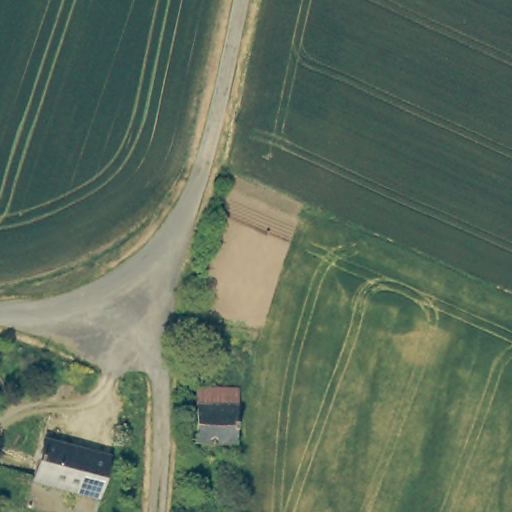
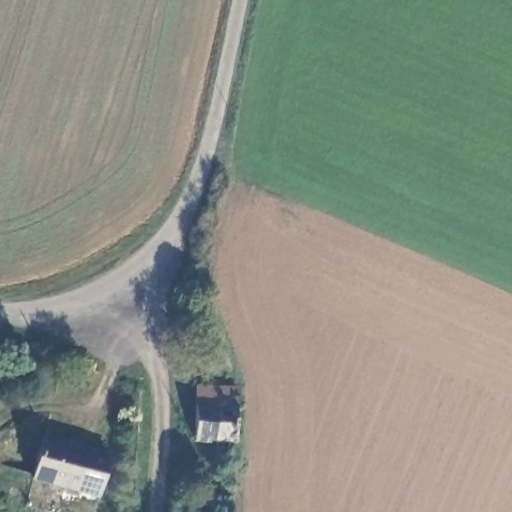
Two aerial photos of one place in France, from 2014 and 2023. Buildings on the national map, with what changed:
unchanged [(192,386),(236,387),(233,439),(191,438),(192,386)]
unchanged [(96,491),(31,475),(42,432),(106,449),(96,491)]

